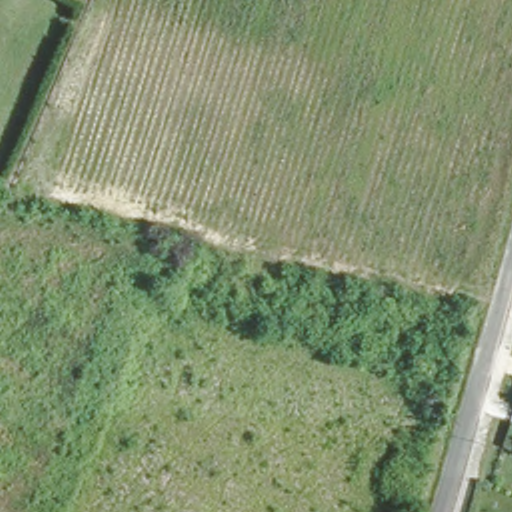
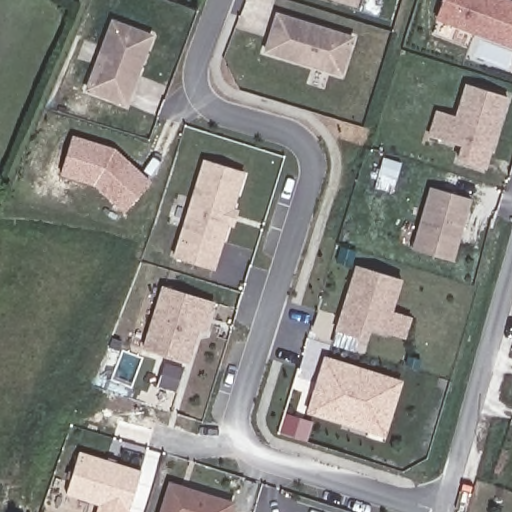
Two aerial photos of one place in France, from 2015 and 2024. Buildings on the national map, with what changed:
new [(352,0),(356,0),(355,1),(352,0)]
new [(442,0),(512,0),(512,42),(437,14),(442,0)]
new [(352,35),(342,71),(267,48),(278,13),(352,35)]
new [(113,21),(151,35),(127,102),(90,89),(113,21)]
new [(464,83),(503,95),(482,167),(456,159),(461,145),(446,140),(464,83)]
new [(117,150),(151,182),(126,209),(99,183),(67,174),(77,138),(117,150)]
new [(206,158),(243,169),(214,267),(176,256),(206,158)]
new [(427,187),(466,198),(449,260),(410,250),(427,187)]
new [(360,263),(404,277),(387,329),(371,323),(366,338),(339,329),(360,263)]
new [(215,300),(210,315),(207,327),(200,325),(190,359),(148,347),(166,285),(215,300)]
new [(370,422),(315,405),(331,354),(403,377),(394,406),(387,427),(370,422)]
new [(146,471),(133,511),(67,490),(81,450),(146,471)]
new [(175,483),(237,501),(234,512),(167,512),(175,483)]

